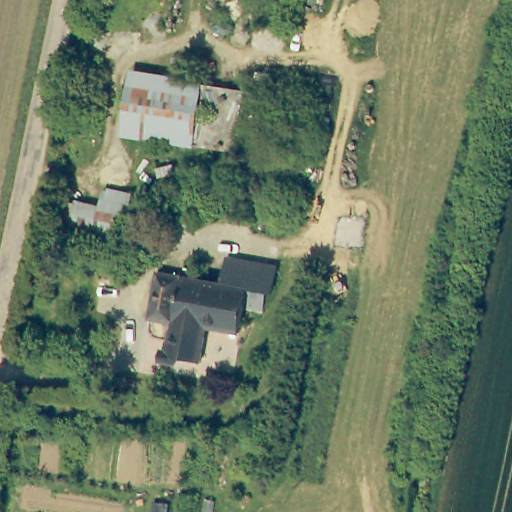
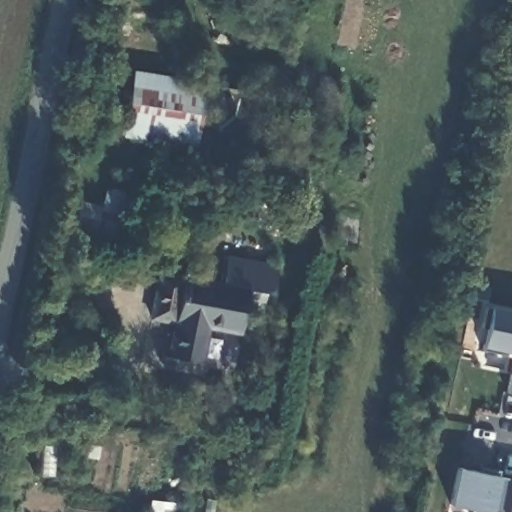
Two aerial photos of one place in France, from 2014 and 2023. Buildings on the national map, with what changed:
unchanged [(130,72),(249,92),(239,152),(121,135),(130,72)]
unchanged [(121,240),(64,227),(68,202),(102,207),(109,190),(133,192),(121,240)]
unchanged [(226,257),(277,266),(273,295),(266,293),(264,302),(245,299),(246,289),(220,285),(226,257)]
unchanged [(246,289),(239,333),(204,327),(199,362),(175,357),(173,368),(158,366),(160,352),(167,354),(172,326),(148,322),(155,275),(246,289)]
new [(484,347),(492,309),(512,313),(512,357),(483,352),(484,347)]
new [(512,368),(512,377),(510,377),(512,368)]
new [(473,510),(450,505),(457,470),(512,481),(512,512),(473,512),(473,510)]

